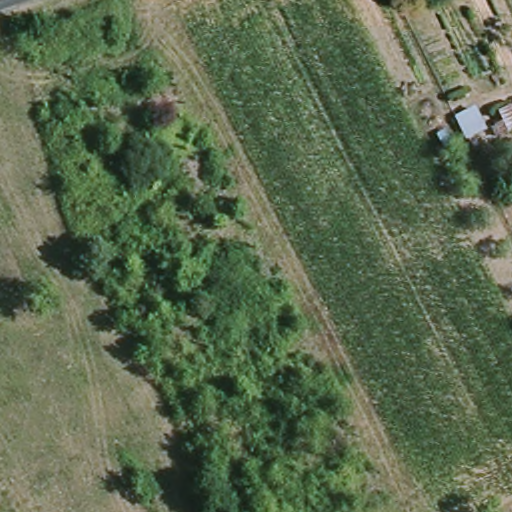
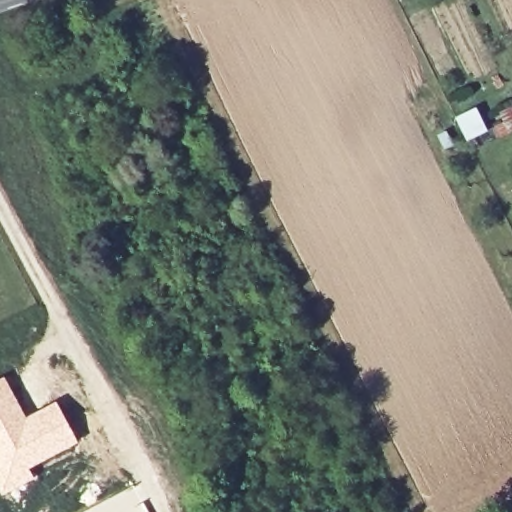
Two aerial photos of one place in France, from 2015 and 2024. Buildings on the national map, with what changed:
new [(4,376),(26,417),(56,400),(79,442),(29,470),(35,479),(2,496),(0,492),(0,377),(4,376)]

